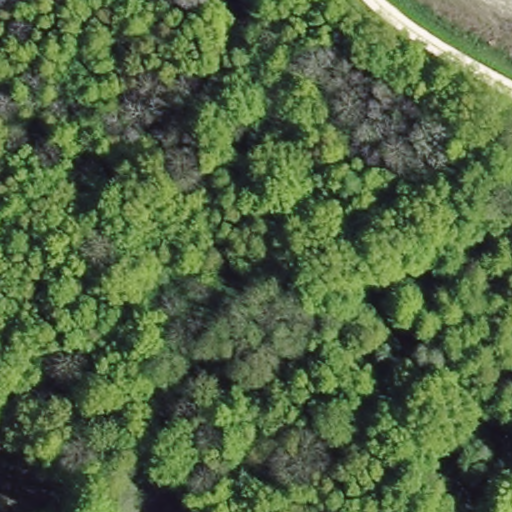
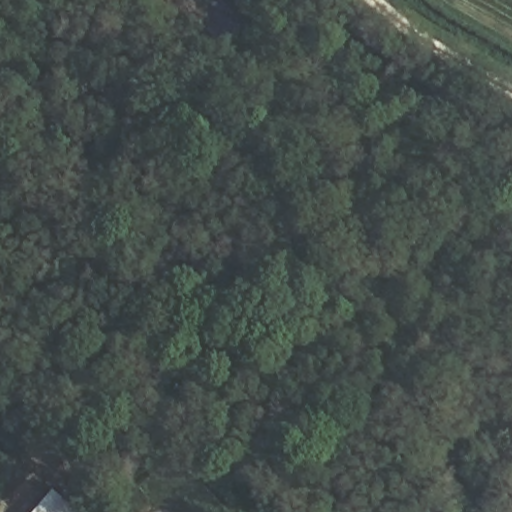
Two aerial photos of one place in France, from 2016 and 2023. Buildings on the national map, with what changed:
new [(52,492),(75,512),(34,512),(52,492)]

